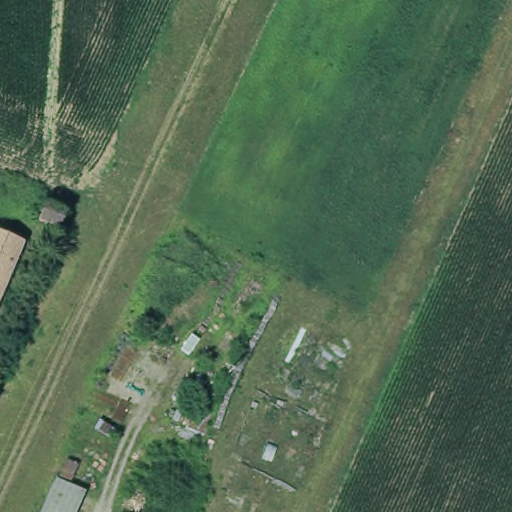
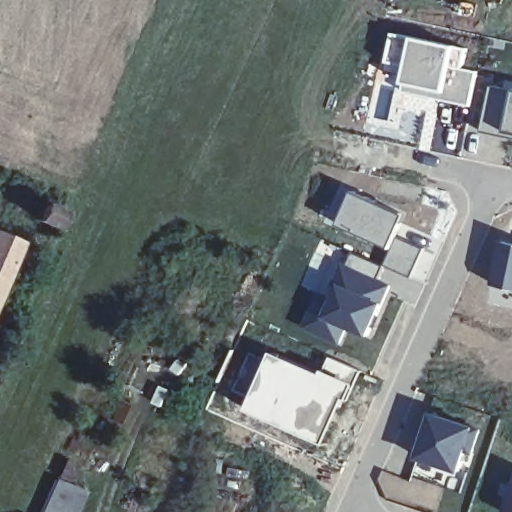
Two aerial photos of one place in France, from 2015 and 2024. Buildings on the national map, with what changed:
new [(392,31),(470,47),(466,67),(481,70),(472,107),(406,93),(383,82),(392,31)]
new [(491,83),(512,88),(512,135),(482,129),(491,83)]
new [(355,190),(408,214),(399,235),(392,248),(340,223),(355,190)]
unchanged [(42,205),(62,214),(54,229),(35,220),(42,205)]
unchanged [(0,292),(0,234),(21,243),(0,292)]
new [(329,293),(340,260),(344,262),(349,251),(384,265),(392,248),(399,235),(427,249),(417,276),(426,280),(415,305),(390,292),(369,335),(350,328),(340,345),(302,328),(319,289),(329,293)]
new [(502,240),(512,242),(512,288),(492,284),(502,240)]
new [(230,390),(247,351),(267,359),(272,350),(322,371),(330,355),(363,369),(326,446),(247,409),(251,399),(230,390)]
new [(434,410),(480,426),(460,473),(417,459),(434,410)]
unchanged [(65,512),(39,512),(55,475),(77,483),(65,512)]
new [(505,512),(512,484),(512,512),(505,512)]

